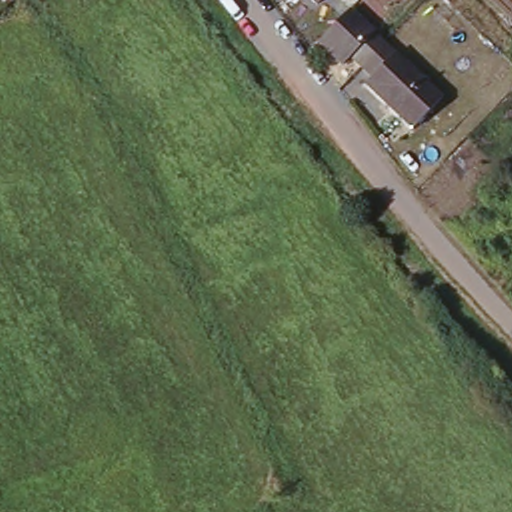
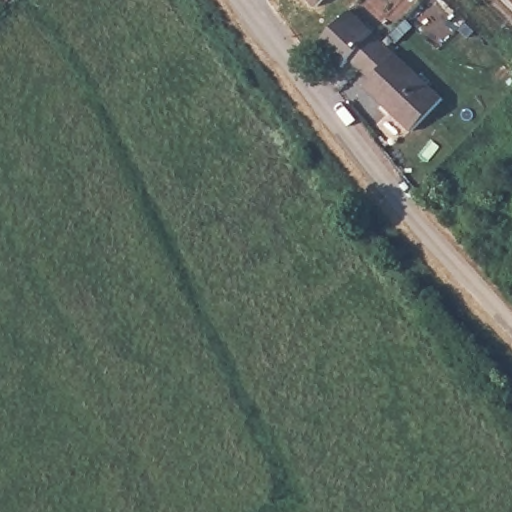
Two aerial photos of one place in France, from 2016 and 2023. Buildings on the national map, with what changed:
unchanged [(320,10),(310,0),(331,0),(320,10)]
unchanged [(445,101),(414,130),(371,84),(378,76),(359,56),(349,64),(325,37),(357,5),(445,101)]

